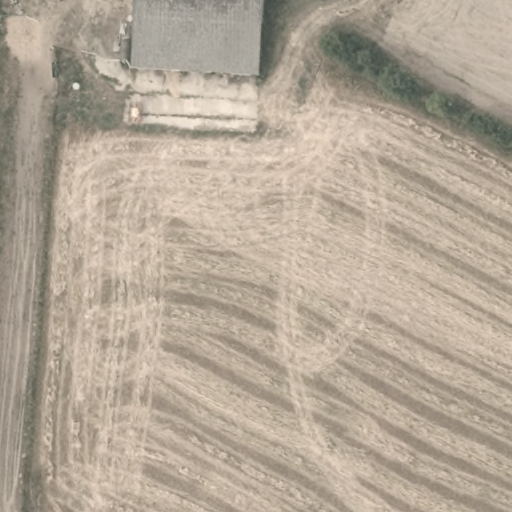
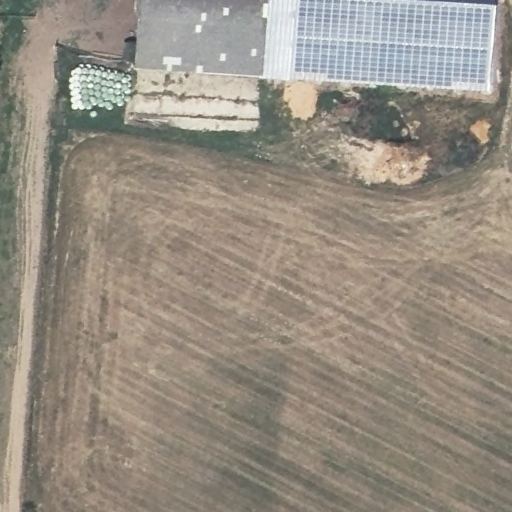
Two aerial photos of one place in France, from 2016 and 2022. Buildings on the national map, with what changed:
unchanged [(261,76),(136,67),(139,0),(266,0),(261,76)]
new [(287,80),(291,0),(492,0),(486,92),(287,80)]

